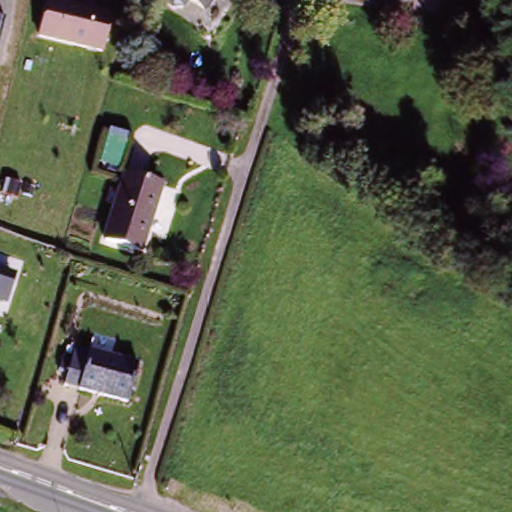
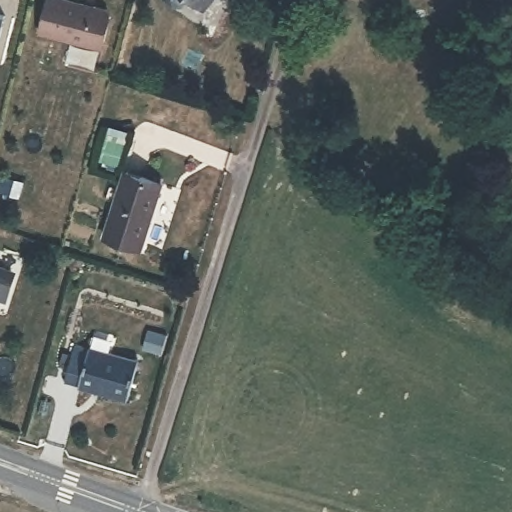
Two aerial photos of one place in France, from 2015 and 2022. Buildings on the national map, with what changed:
unchanged [(62,0),(112,11),(103,50),(40,33),(47,0),(62,0)]
unchanged [(160,3),(160,0),(188,0),(180,12),(172,13),(160,3)]
unchanged [(188,0),(208,0),(201,10),(188,0)]
unchanged [(5,17),(0,40),(0,16),(5,17)]
unchanged [(160,193),(142,248),(107,236),(123,181),(160,193)]
unchanged [(128,395),(67,379),(77,343),(137,362),(128,395)]

